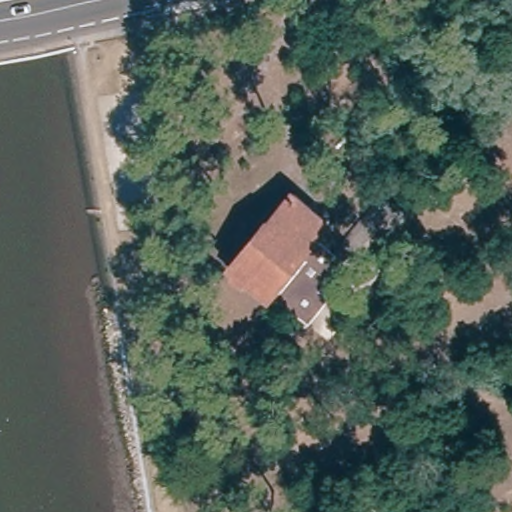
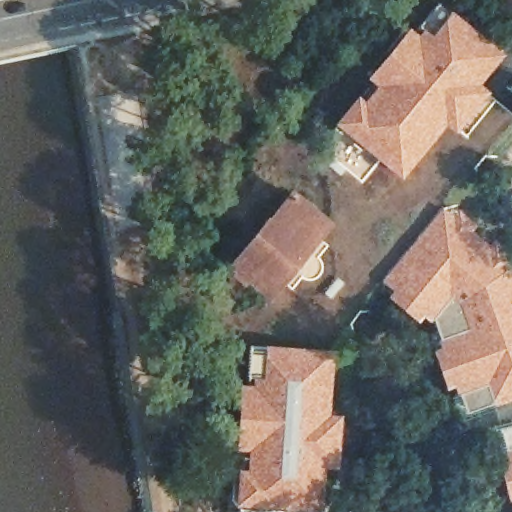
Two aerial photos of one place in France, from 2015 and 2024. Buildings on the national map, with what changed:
new [(478,72),(512,102),(512,114),(487,144),(331,341),(322,512),(302,512),(254,509),(236,489),(250,318),(265,299),(324,224),(385,146),(342,111),(433,0),(448,0),(501,42),(478,72)]
unchanged [(265,299),(227,268),(286,196),(324,224),(265,299)]
new [(455,214),(460,208),(477,223),(473,229),(491,245),(496,239),(512,254),(512,255),(509,259),(512,262),(512,398),(495,404),(493,401),(466,410),(459,392),(456,393),(453,383),(446,386),(433,347),(441,345),(438,337),(441,336),(433,317),(430,320),(423,314),(418,320),(387,295),(393,288),(383,280),(443,207),(455,214)]
new [(499,414),(512,411),(512,474),(499,414)]

